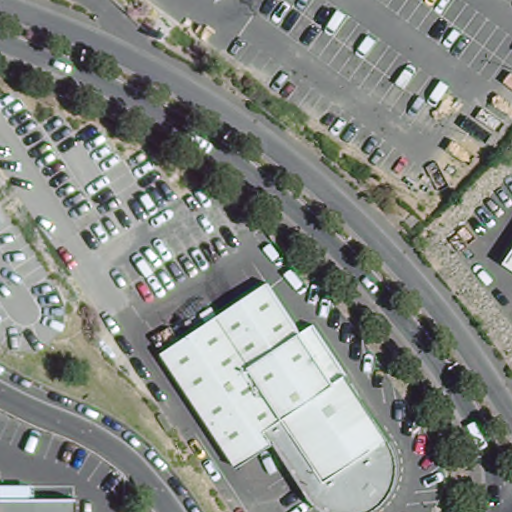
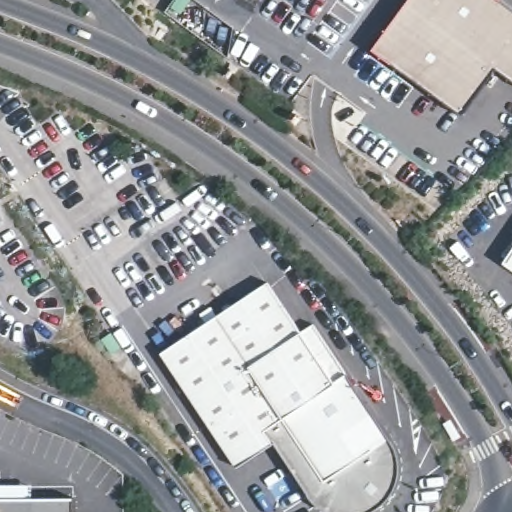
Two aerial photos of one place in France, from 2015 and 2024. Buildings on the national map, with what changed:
new [(412,0),(493,0),(512,14),(512,87),(496,76),(463,122),(372,55),(412,0)]
unchanged [(512,248),(512,268),(503,262),(512,248)]
unchanged [(208,310),(213,318),(265,285),(298,336),(311,328),(387,445),(389,448),(392,454),(394,460),(395,466),(395,472),(395,478),(394,485),(392,491),(389,496),(386,501),(381,506),(377,510),(375,512),(316,512),(314,511),(309,506),(305,501),(304,499),(269,446),(232,470),(158,355),(203,325),(198,317),(208,310)]
unchanged [(74,512),(0,512),(0,501),(74,499),(74,512)]

